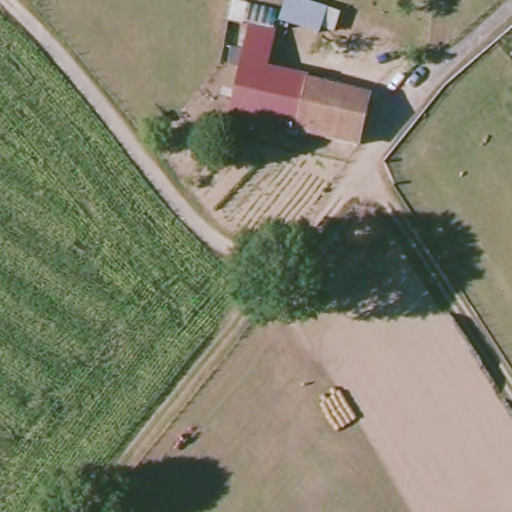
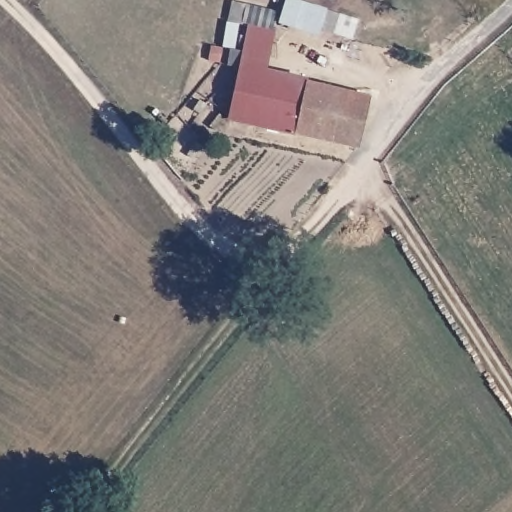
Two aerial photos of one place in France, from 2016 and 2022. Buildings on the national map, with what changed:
unchanged [(252,31),(278,33),(273,71),(315,81),(306,133),(236,120),(252,31)]
unchanged [(315,81),(368,93),(360,143),(306,133),(315,81)]

